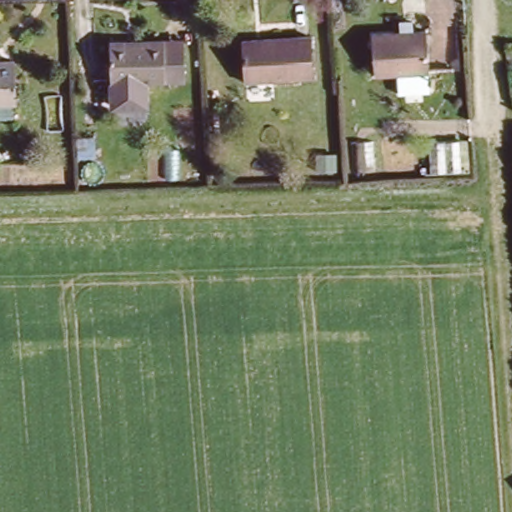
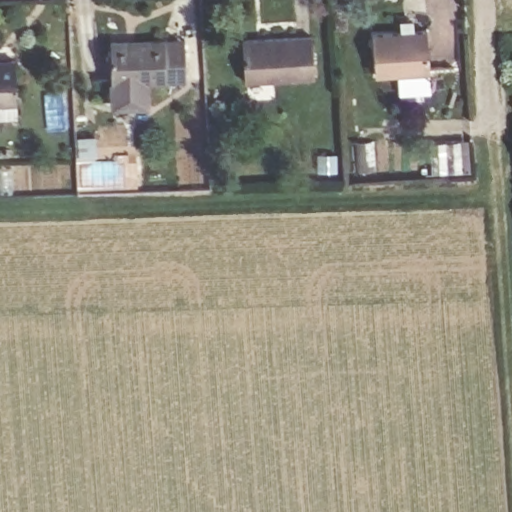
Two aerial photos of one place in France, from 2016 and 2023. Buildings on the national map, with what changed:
unchanged [(397,29),(397,21),(408,21),(408,28),(422,27),(424,69),(420,69),(420,84),(390,86),(390,71),(370,72),(367,31),(397,29)]
unchanged [(307,34),(308,78),(239,81),(237,37),(307,34)]
unchanged [(181,39),(183,79),(162,80),(144,80),(144,102),(140,106),(113,106),(109,102),(107,42),(160,40),(181,39)]
unchanged [(14,101),(0,101),(0,60),(12,60),(14,101)]

